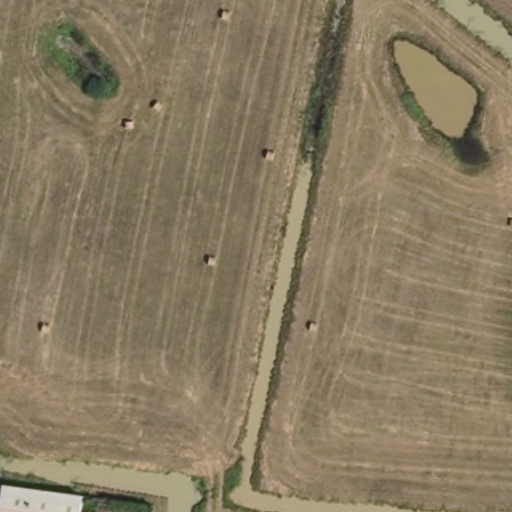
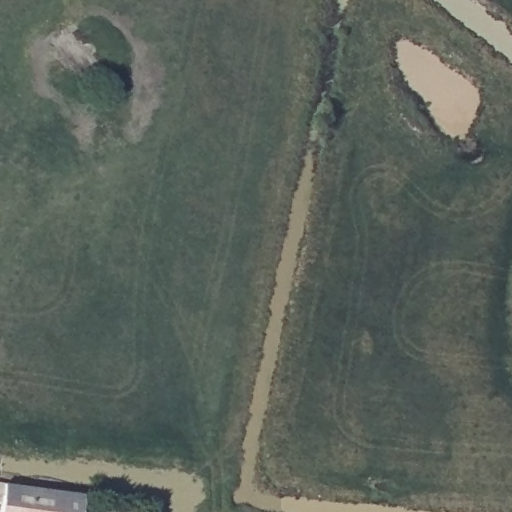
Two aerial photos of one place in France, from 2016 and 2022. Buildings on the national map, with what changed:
unchanged [(85,512),(5,512),(7,503),(0,502),(0,489),(87,503),(85,512)]

